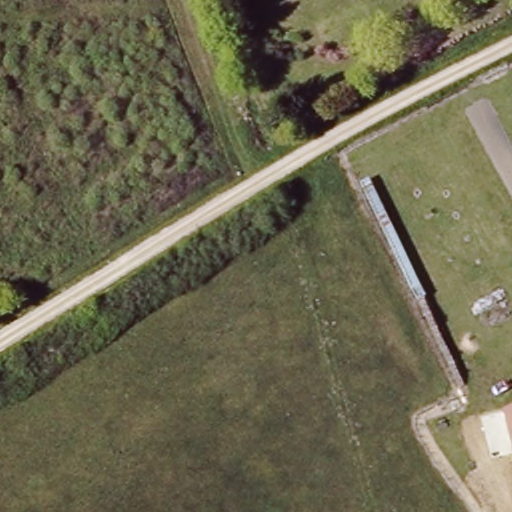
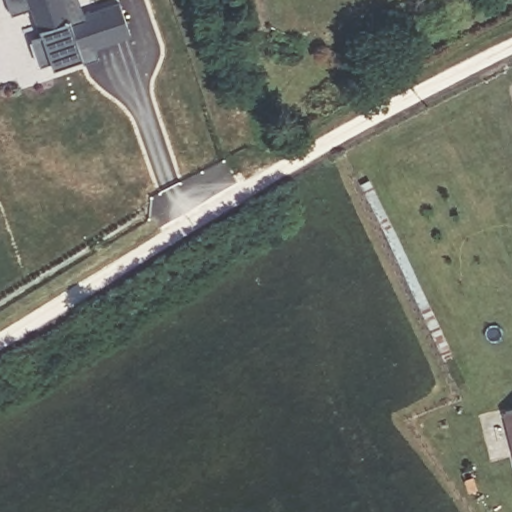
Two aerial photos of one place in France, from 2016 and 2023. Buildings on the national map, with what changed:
new [(99,57),(83,64),(81,59),(52,69),(50,63),(38,67),(30,40),(38,37),(36,30),(38,29),(30,7),(12,15),(7,0),(79,0),(84,13),(119,2),(131,35),(95,47),(99,57)]
unchanged [(505,410),(512,408),(512,439),(505,410)]

